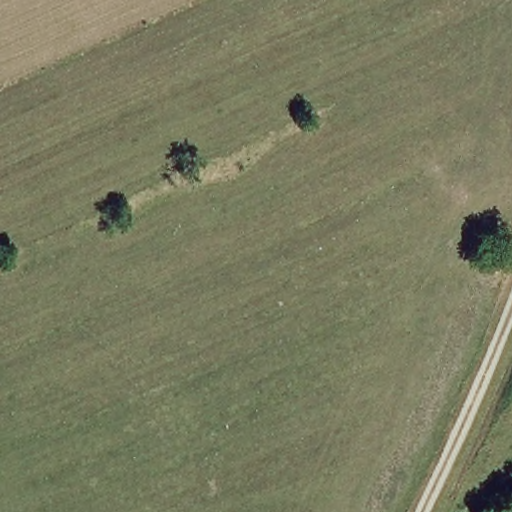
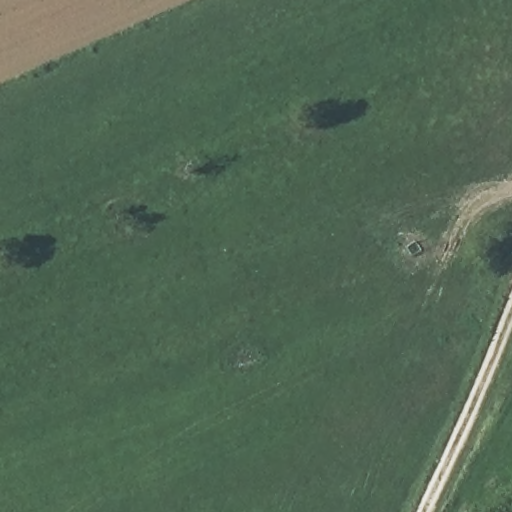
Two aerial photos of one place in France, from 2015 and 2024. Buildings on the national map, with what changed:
[]

